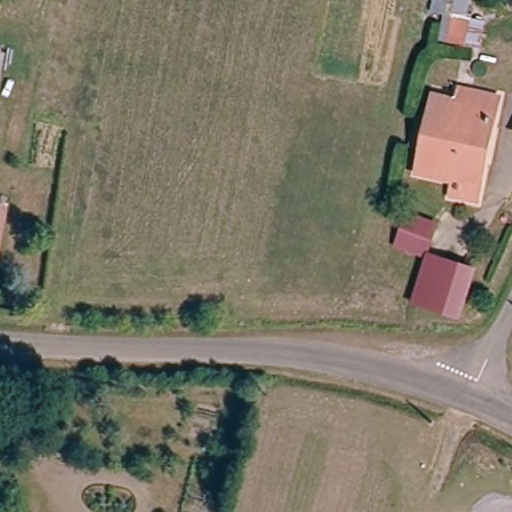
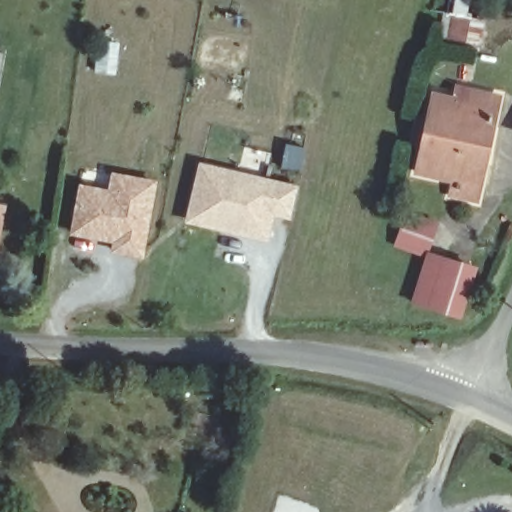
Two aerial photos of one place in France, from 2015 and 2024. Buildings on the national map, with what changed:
new [(465,0),(470,18),(485,21),(480,51),(445,46),(448,26),(442,25),(444,15),(453,16),(457,0),(465,0)]
unchanged [(479,103),(483,89),(505,93),(501,107),(478,198),(451,192),(453,182),(418,175),(429,135),(439,96),(479,103)]
new [(259,242),(220,232),(221,227),(190,219),(204,169),(229,175),(279,188),(300,193),(292,222),(273,217),(270,229),(266,244),(259,242)]
new [(108,190),(112,172),(158,180),(144,258),(112,252),(113,244),(70,236),(79,185),(108,190)]
unchanged [(406,221),(434,230),(427,251),(399,244),(406,221)]
unchanged [(432,257),(471,267),(462,309),(421,298),(432,257)]

